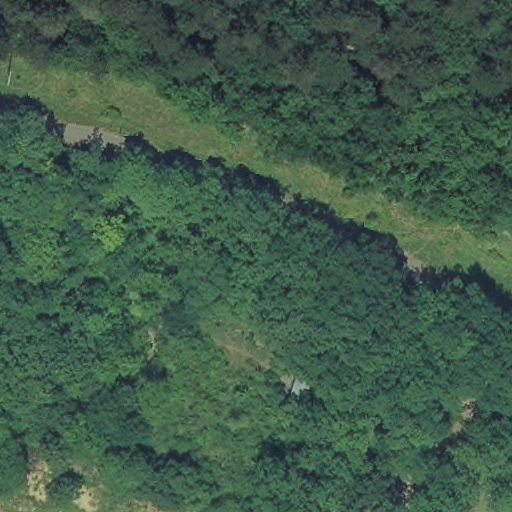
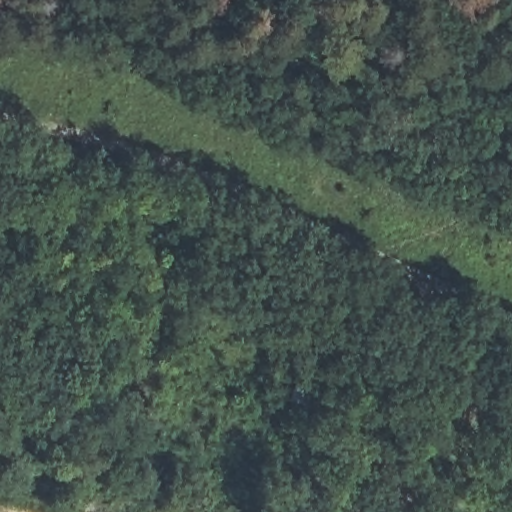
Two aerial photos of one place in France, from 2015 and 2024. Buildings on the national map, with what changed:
unchanged [(291,379),(315,381),(303,413),(284,404),(291,379)]

